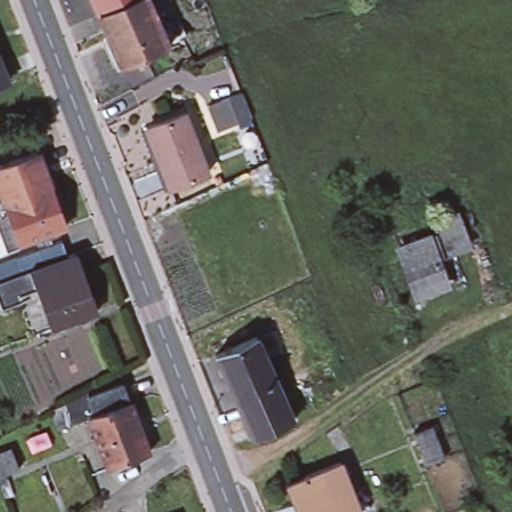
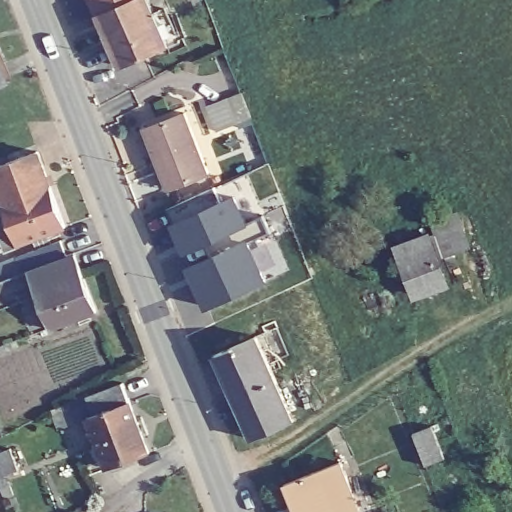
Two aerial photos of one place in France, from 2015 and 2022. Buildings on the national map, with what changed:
unchanged [(95,0),(143,0),(103,18),(95,0)]
unchanged [(150,0),(171,52),(126,71),(103,18),(143,0),(150,0)]
unchanged [(6,79),(0,81),(0,65),(6,79)]
unchanged [(239,92),(248,116),(235,122),(225,97),(239,92)]
unchanged [(184,113),(208,174),(168,189),(163,191),(139,131),(146,128),(184,113)]
unchanged [(37,149),(48,189),(2,205),(0,198),(0,160),(37,149)]
new [(210,187),(217,202),(230,197),(242,222),(260,215),(266,231),(243,242),(260,278),(203,304),(195,284),(201,281),(193,263),(209,257),(201,240),(188,246),(177,221),(171,224),(165,207),(210,187)]
unchanged [(3,253),(0,243),(0,210),(4,209),(2,205),(48,189),(63,228),(55,231),(31,240),(17,245),(18,247),(3,253)]
unchanged [(422,240),(437,287),(410,297),(395,250),(422,240)]
unchanged [(62,327),(48,332),(28,339),(15,307),(0,313),(0,285),(20,278),(27,275),(65,260),(74,256),(80,274),(95,316),(85,318),(88,326),(65,335),(62,327)]
unchanged [(221,349),(254,334),(269,367),(237,382),(221,349)]
unchanged [(269,367),(291,417),(260,432),(237,382),(269,367)]
unchanged [(105,472),(86,423),(70,428),(62,407),(85,395),(86,398),(121,386),(128,405),(147,456),(105,472)]
unchanged [(429,425),(441,457),(422,465),(410,432),(429,425)]
unchanged [(337,460),(358,512),(357,512),(294,512),(282,483),(337,460)]

